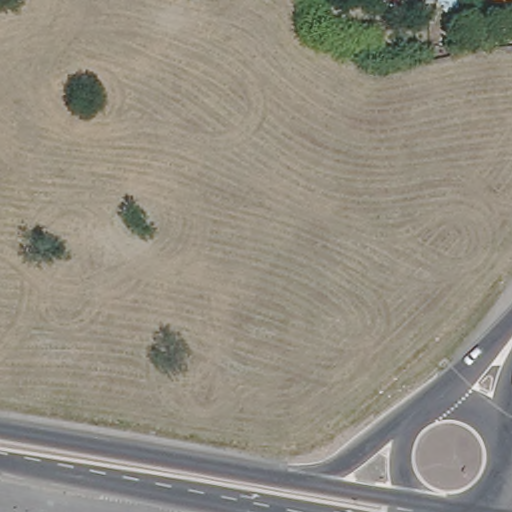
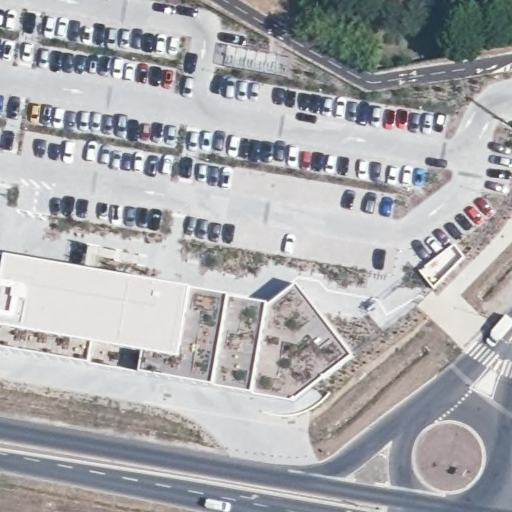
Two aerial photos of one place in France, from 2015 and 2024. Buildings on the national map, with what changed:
new [(195,293),(233,299),(271,304),(297,284),(355,357),(294,404),(254,396),(217,390),(0,353),(0,259),(195,293)]

